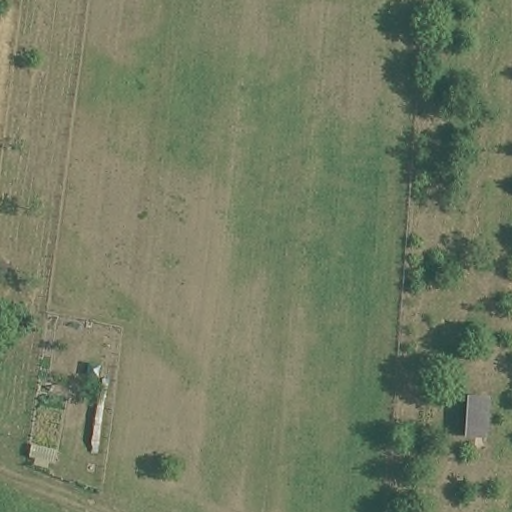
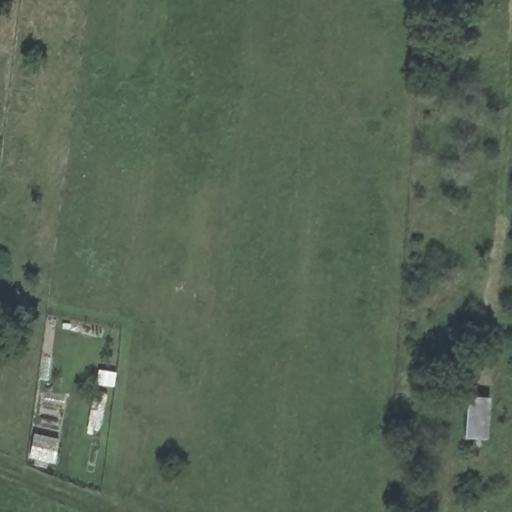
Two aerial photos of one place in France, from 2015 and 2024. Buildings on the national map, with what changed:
unchanged [(484,442),(452,440),(454,389),(487,390),(484,442)]

